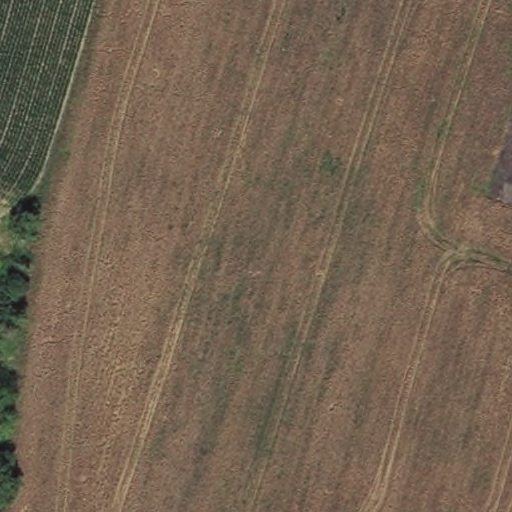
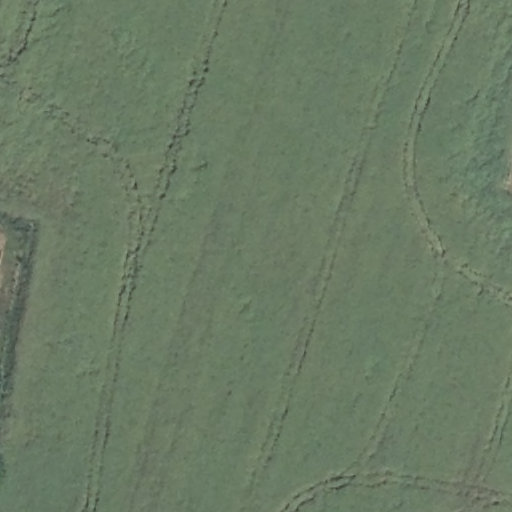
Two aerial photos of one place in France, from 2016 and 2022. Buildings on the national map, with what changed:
[]

